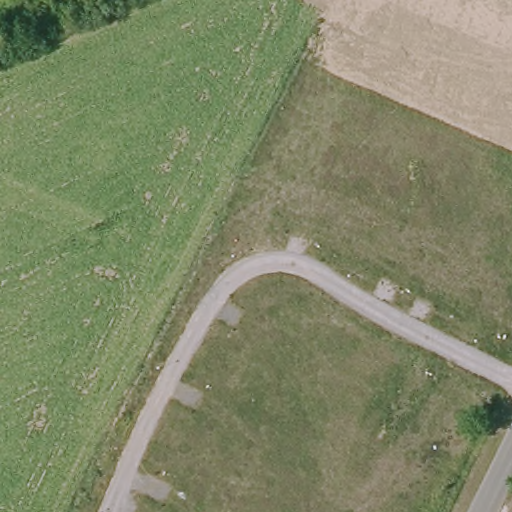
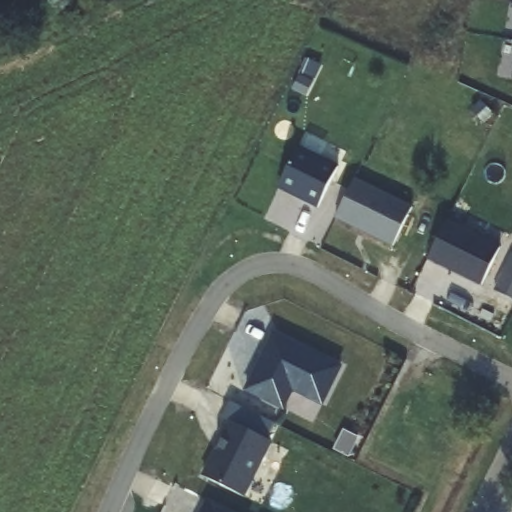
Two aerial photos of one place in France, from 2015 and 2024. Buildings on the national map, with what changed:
new [(278,190),(299,147),(340,167),(318,210),(278,190)]
new [(335,220),(355,179),(414,208),(392,248),(335,220)]
new [(429,260),(448,221),(501,247),(481,285),(429,260)]
new [(494,290),(511,254),(512,254),(512,297),(494,290)]
new [(292,390),(283,408),(246,390),(258,365),(263,354),(273,333),(340,367),(330,388),(322,404),(310,398),(292,390)]
new [(203,478),(230,422),(271,442),(243,498),(203,478)]
new [(210,501),(233,512),(204,512),(210,501)]

